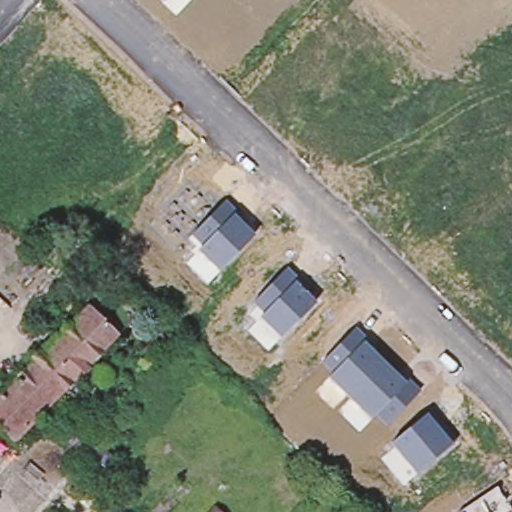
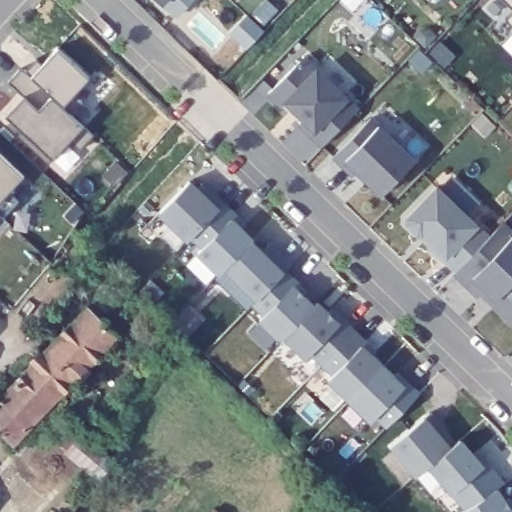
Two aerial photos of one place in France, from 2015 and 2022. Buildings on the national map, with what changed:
unchanged [(162,2),(160,0),(164,0),(162,2)]
new [(512,7),(504,0),(512,0),(512,7)]
new [(512,12),(512,26),(505,19),(512,12)]
new [(420,46),(435,61),(422,73),(407,58),(420,46)]
new [(6,116),(25,97),(8,81),(22,66),(32,76),(57,48),(88,77),(73,94),(81,100),(70,113),(82,125),(92,135),(80,149),(70,140),(52,158),(6,116)]
new [(266,95),(306,55),(318,67),(348,97),(360,107),(321,147),(297,125),(303,121),(284,102),(280,108),(266,95)]
new [(357,171),(352,176),(332,157),(370,119),(377,127),(382,123),(415,160),(379,194),(357,171)]
new [(24,175),(9,190),(20,200),(3,217),(0,215),(0,153),(24,175)]
unchanged [(173,246),(151,223),(164,212),(160,207),(188,182),(212,208),(173,246)]
new [(407,215),(437,184),(478,224),(490,235),(505,221),(512,228),(512,323),(481,293),(477,297),(452,274),(454,271),(417,235),(405,223),(407,215)]
unchanged [(196,251),(203,245),(192,235),(225,202),(238,213),(233,217),(255,237),(218,272),(196,251)]
new [(245,310),(213,277),(218,272),(255,237),(265,247),(271,240),(292,265),(287,268),(282,272),(252,303),(245,310)]
unchanged [(259,319),(265,313),(252,303),(287,268),(298,280),(295,283),(315,303),(278,339),(259,319)]
new [(311,351),(304,357),(282,336),(315,303),(319,299),(331,312),(337,307),(355,329),(323,363),(311,351)]
unchanged [(88,306),(117,334),(13,441),(0,428),(0,397),(88,306)]
unchanged [(326,378),(332,371),(323,363),(355,329),(367,340),(364,343),(406,383),(409,379),(420,391),(385,426),(374,414),(370,419),(326,378)]
unchanged [(391,443),(427,415),(451,445),(415,473),(391,443)]
new [(451,445),(462,438),(473,451),(478,448),(502,482),(497,487),(463,510),(449,489),(440,477),(428,487),(417,472),(426,465),(451,445)]
unchanged [(512,510),(512,512),(461,512),(497,487),(512,510)]

